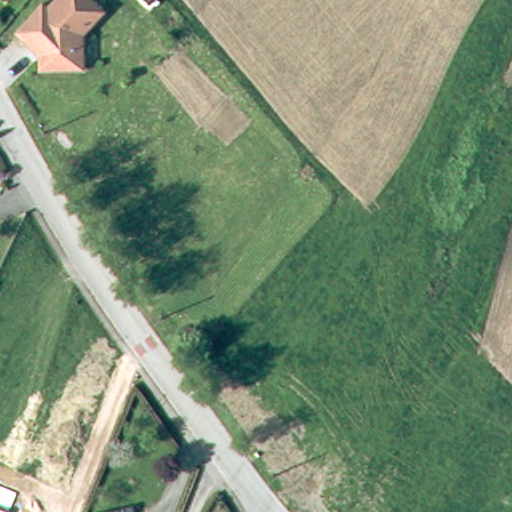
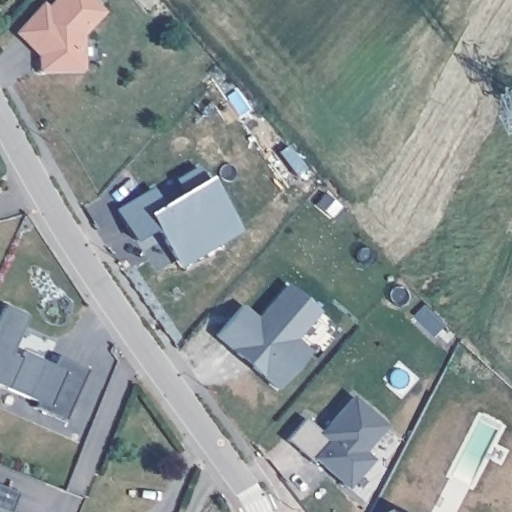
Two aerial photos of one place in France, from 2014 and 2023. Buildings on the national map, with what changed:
unchanged [(57,70),(38,71),(37,56),(41,52),(33,44),(30,48),(13,33),(39,4),(43,8),(51,0),(90,0),(102,11),(80,34),(80,41),(82,69),(57,70)]
new [(152,190),(163,207),(185,194),(177,181),(198,169),(206,181),(209,180),(240,231),(222,241),(218,235),(177,259),(157,228),(136,241),(118,211),(152,190)]
new [(285,284),(319,313),(297,339),(310,352),(277,390),(215,336),(241,305),(257,317),(285,284)]
new [(87,369),(65,419),(33,406),(36,399),(0,384),(0,313),(3,306),(27,317),(11,354),(21,359),(23,352),(53,365),(57,356),(87,369)]
new [(305,419),(322,433),(352,398),(385,427),(363,452),(372,460),(348,488),(315,460),(312,463),(287,440),(305,419)]
new [(408,512),(396,512),(399,507),(408,512)]
unchanged [(0,512),(0,509),(8,512),(0,512)]

